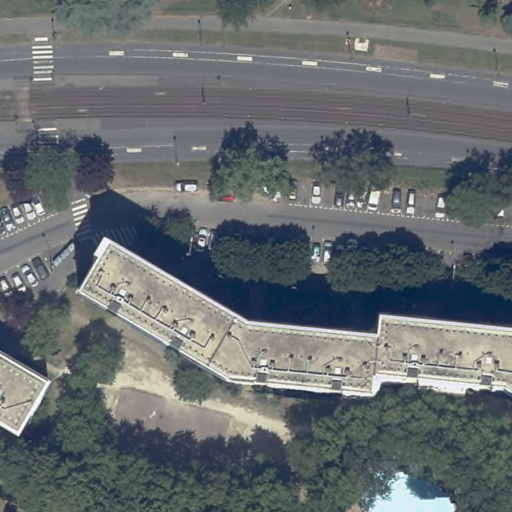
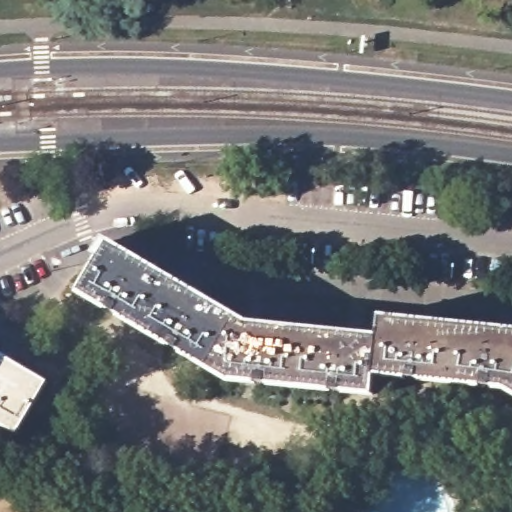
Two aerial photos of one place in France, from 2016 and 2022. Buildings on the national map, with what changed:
unchanged [(377,378),(374,398),(235,383),(94,303),(120,253),(250,325),(381,340),(384,320),(512,334),(512,394),(509,392),(377,378)]
unchanged [(45,387),(15,437),(0,428),(0,359),(45,387)]

